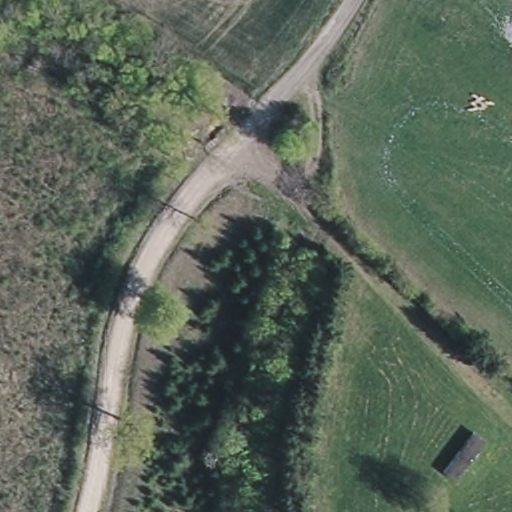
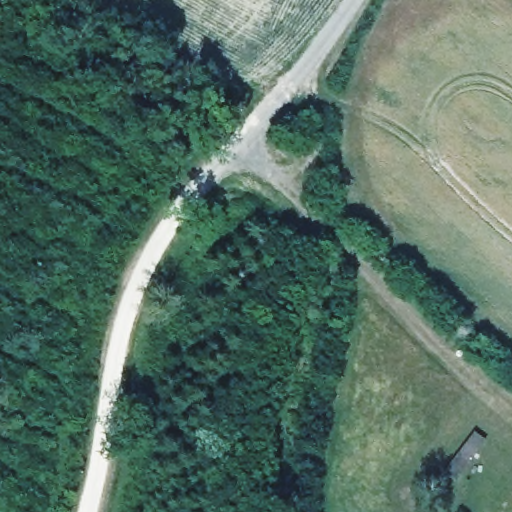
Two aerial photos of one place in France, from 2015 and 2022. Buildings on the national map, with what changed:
unchanged [(441,476),(475,433),(491,444),(456,482),(441,476)]

